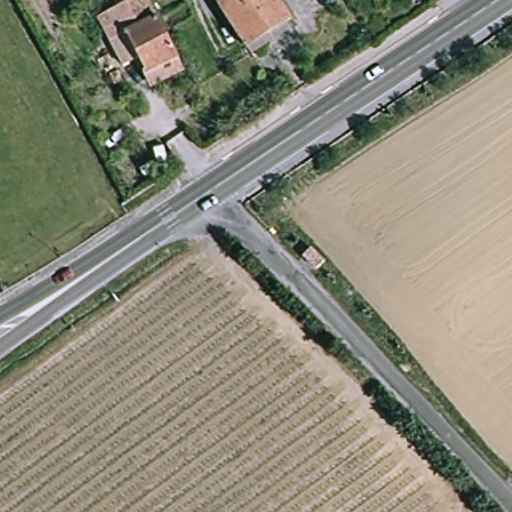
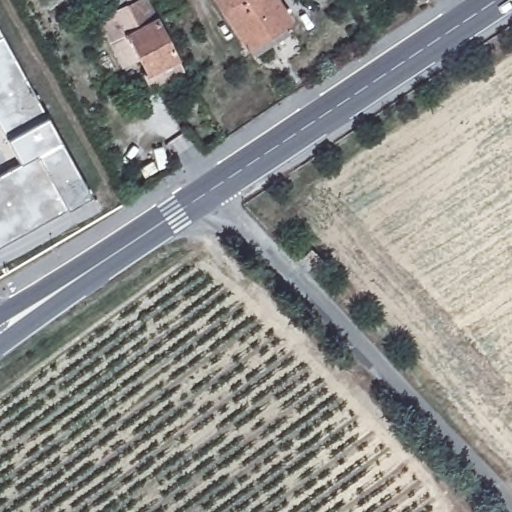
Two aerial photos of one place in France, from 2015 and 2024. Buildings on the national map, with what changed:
unchanged [(148,79),(141,68),(129,74),(126,76),(108,44),(96,23),(100,21),(138,0),(147,0),(181,61),(187,71),(153,90),(148,79)]
unchanged [(113,0),(133,0),(118,9),(113,0)]
unchanged [(278,0),(292,20),(247,49),(214,0),(278,0)]
new [(18,164),(0,132),(0,38),(90,196),(0,247),(0,174),(18,164)]
unchanged [(286,228),(291,234),(280,243),(275,237),(286,228)]

